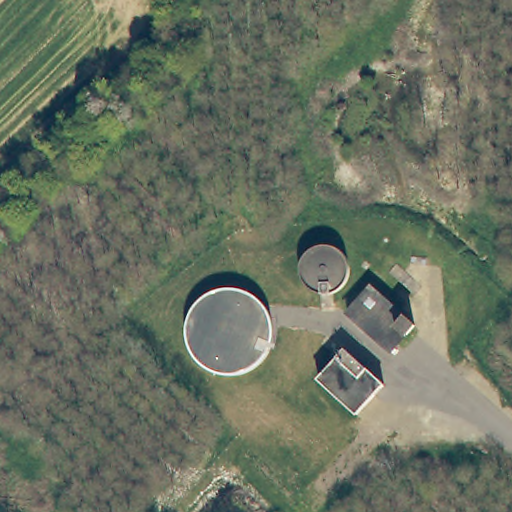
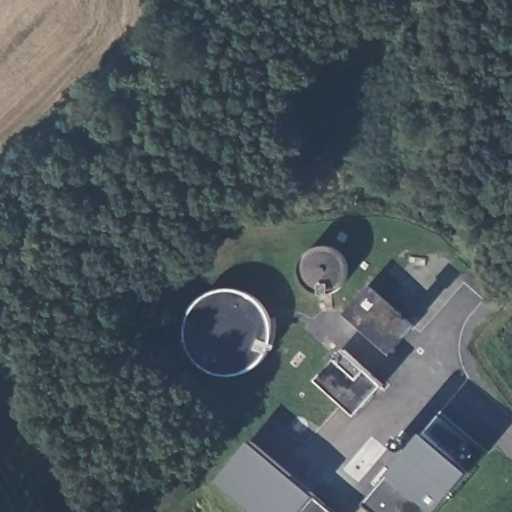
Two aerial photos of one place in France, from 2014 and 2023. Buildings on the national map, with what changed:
unchanged [(420,326),(394,353),(351,310),(376,284),(420,326)]
unchanged [(388,381),(359,411),(322,375),(349,345),(388,381)]
new [(435,512),(375,512),(366,504),(391,473),(424,431),(471,471),(435,512)]
new [(217,482),(251,440),(316,495),(334,512),(254,512),(217,482)]

